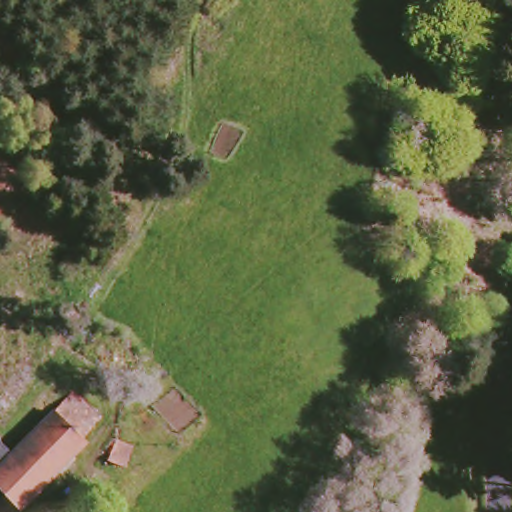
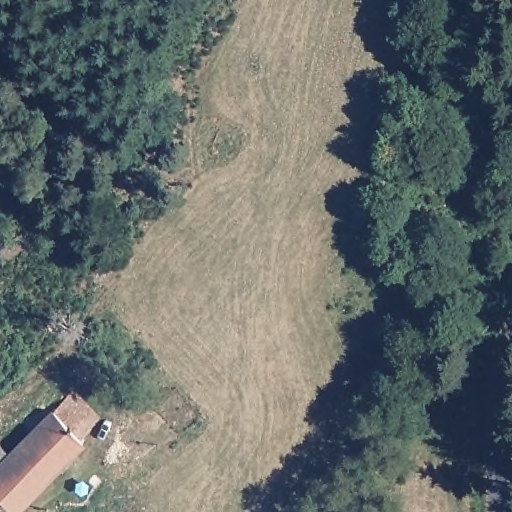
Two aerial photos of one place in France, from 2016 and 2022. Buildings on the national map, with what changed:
unchanged [(50,410),(68,391),(99,419),(80,440),(50,410)]
unchanged [(50,410),(80,440),(18,508),(0,491),(0,448),(9,456),(50,410)]

